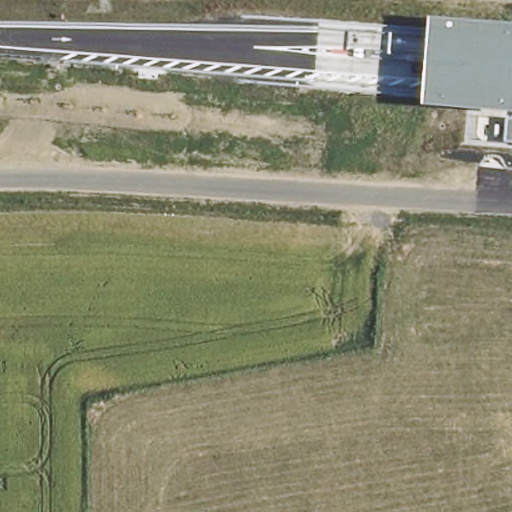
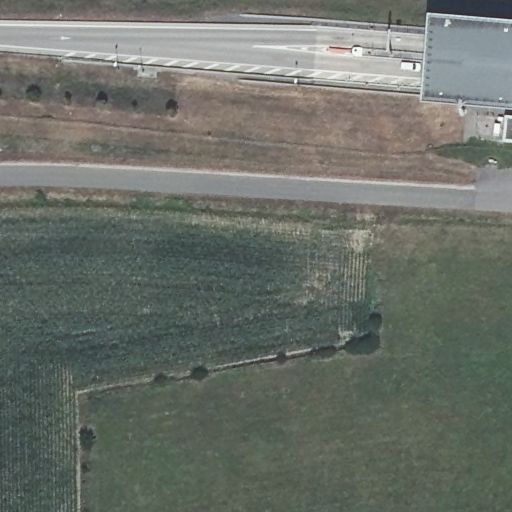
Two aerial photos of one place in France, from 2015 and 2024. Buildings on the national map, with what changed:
unchanged [(431,20),(512,26),(512,113),(423,106),(431,20)]
unchanged [(512,142),(506,142),(507,119),(512,119),(512,142)]

